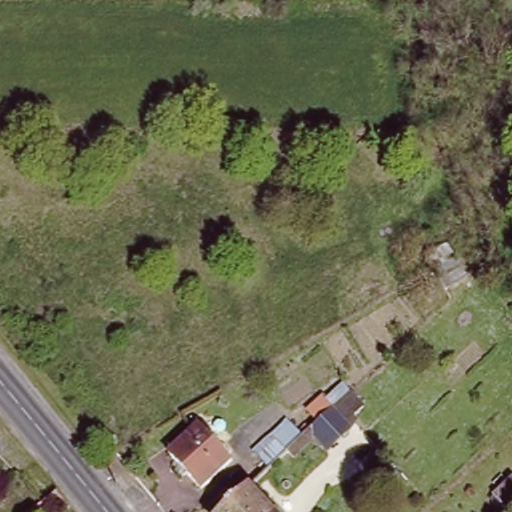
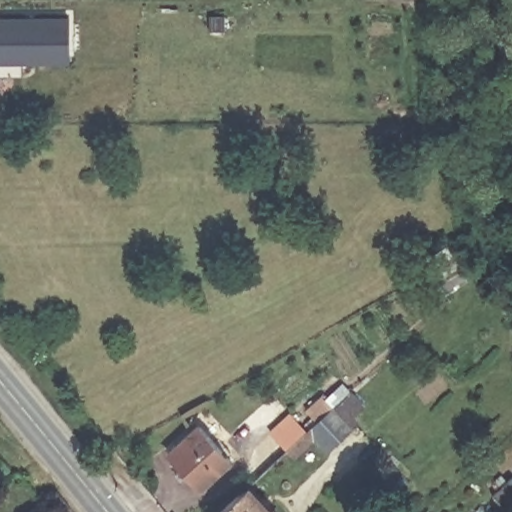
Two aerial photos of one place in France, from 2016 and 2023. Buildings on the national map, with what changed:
new [(67,18),(68,51),(68,61),(11,62),(0,62),(0,19),(67,18)]
unchanged [(428,260),(454,246),(470,277),(447,292),(428,260)]
unchanged [(336,403),(354,422),(326,448),(307,430),(336,403)]
unchanged [(234,460),(202,490),(168,455),(200,424),(234,460)]
unchanged [(492,484),(512,467),(512,493),(505,499),(492,484)]
unchanged [(250,488),(272,512),(224,512),(250,488)]

